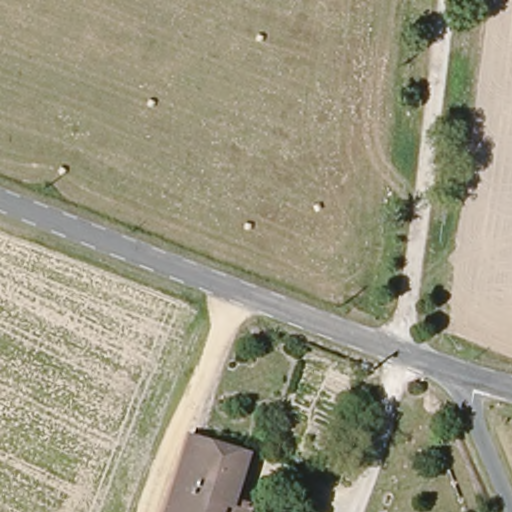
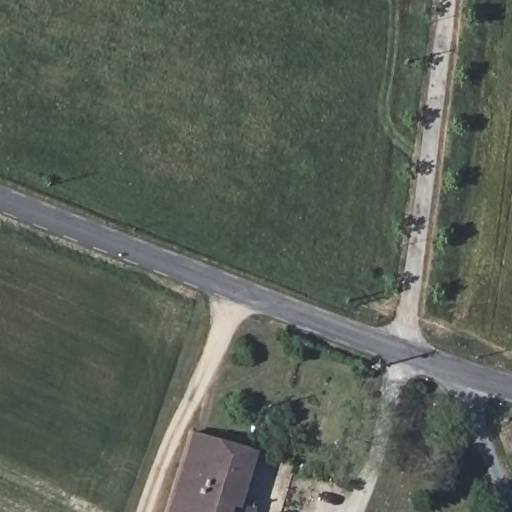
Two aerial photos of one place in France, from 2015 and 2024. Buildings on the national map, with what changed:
unchanged [(192,428),(251,447),(229,512),(163,512),(192,428)]

